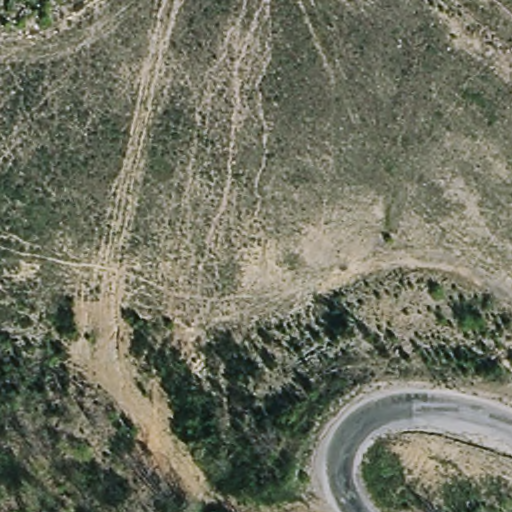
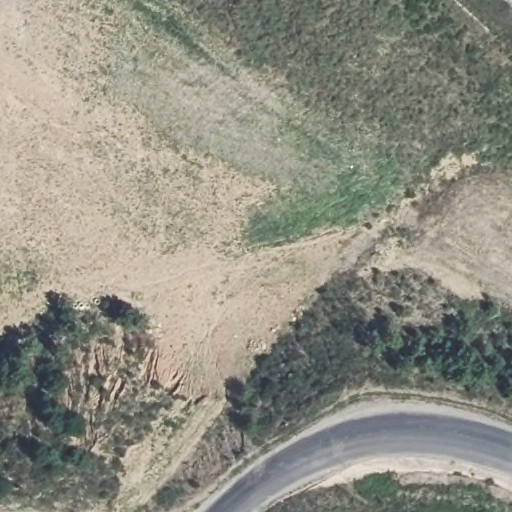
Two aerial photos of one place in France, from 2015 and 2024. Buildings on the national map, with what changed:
[]

